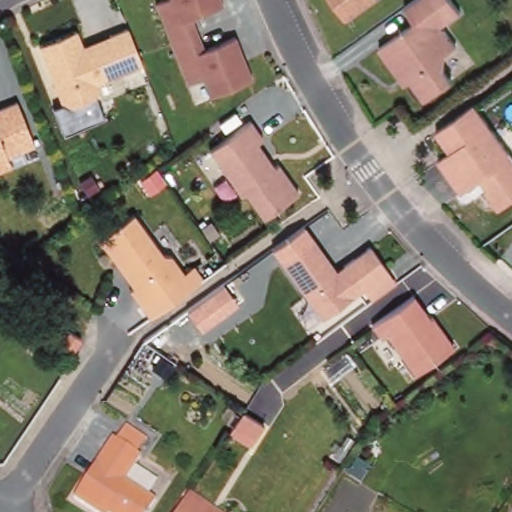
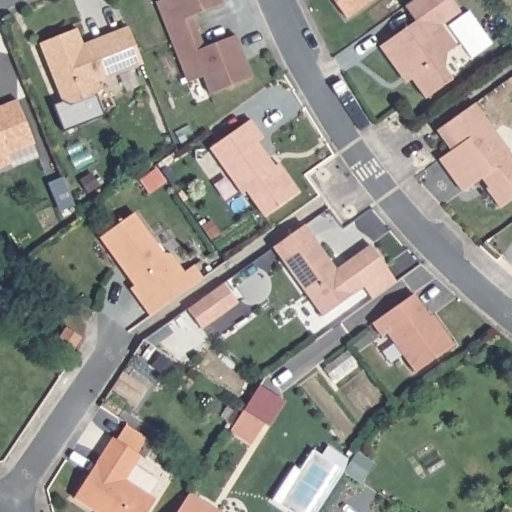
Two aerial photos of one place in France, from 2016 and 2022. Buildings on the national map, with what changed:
unchanged [(199,81),(183,86),(151,6),(164,0),(214,0),(218,9),(188,21),(199,50),(230,38),(247,82),(205,97),(199,81)]
unchanged [(326,0),(368,0),(340,21),(326,0)]
unchanged [(377,51),(413,25),(402,10),(416,0),(445,0),(458,18),(440,31),(455,52),(443,60),(442,73),(449,84),(423,102),(409,82),(403,88),(396,80),(377,51)]
unchanged [(99,82),(101,90),(98,95),(66,107),(41,43),(77,29),(83,45),(130,27),(141,53),(145,64),(99,82)]
unchanged [(33,147),(5,157),(8,167),(0,170),(0,111),(16,105),(33,147)]
unchanged [(512,201),(497,212),(483,192),(486,191),(479,182),(461,194),(436,163),(448,155),(433,134),(472,107),(512,163),(512,201)]
unchanged [(266,217),(248,191),(242,195),(210,149),(252,119),(265,137),(259,142),(276,166),(280,164),(301,192),(266,217)]
unchanged [(162,258),(170,260),(184,278),(140,310),(129,293),(133,291),(98,242),(133,217),(162,258)]
unchanged [(369,298),(361,286),(320,316),(279,259),(310,237),(333,268),(367,244),(385,268),(394,281),(371,297),(369,298)]
unchanged [(414,293),(429,317),(433,313),(454,343),(414,371),(387,332),(380,337),(371,323),(414,293)]
unchanged [(194,305),(201,315),(188,323),(182,313),(194,305)]
unchanged [(73,351),(57,342),(66,327),(81,337),(73,351)]
unchanged [(264,426),(256,437),(233,423),(242,411),(264,426)]
unchanged [(125,482),(157,502),(150,512),(90,512),(73,501),(112,442),(115,443),(124,428),(145,441),(136,456),(140,459),(125,482)]
new [(299,470),(312,450),(320,455),(326,446),(349,461),(344,470),(320,507),(317,512),(292,512),(273,500),(294,466),(299,470)]
unchanged [(191,491),(215,505),(211,512),(178,512),(191,491)]

